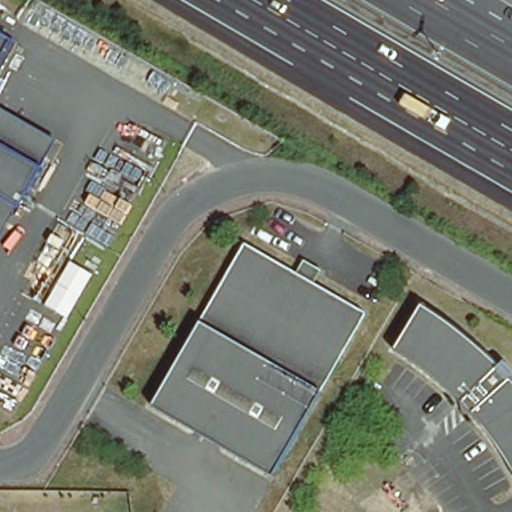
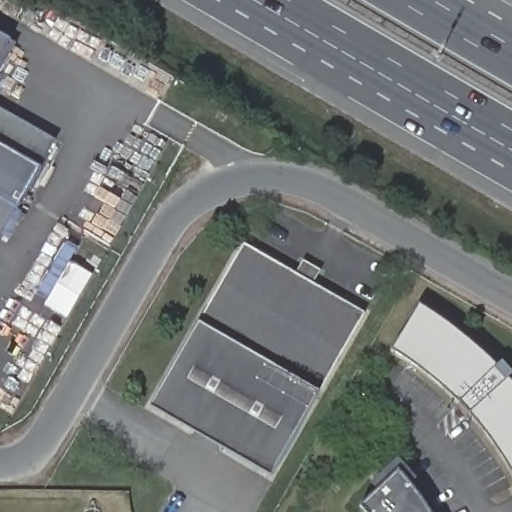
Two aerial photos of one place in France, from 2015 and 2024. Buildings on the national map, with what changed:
unchanged [(0,46),(0,33),(5,36),(0,46)]
unchanged [(35,167),(0,147),(0,103),(54,135),(35,167)]
unchanged [(12,209),(11,208),(0,202),(0,147),(35,167),(17,200),(12,209)]
unchanged [(0,202),(11,208),(0,227),(0,202)]
unchanged [(268,478),(148,406),(246,241),(294,270),(304,252),(325,265),(315,281),(365,311),(268,478)]
unchanged [(511,464),(497,443),(481,422),(465,403),(446,385),(426,368),(406,353),(392,345),(420,300),(436,310),(460,327),(481,346),(496,361),(502,367),(510,375),(512,378),(512,465),(511,464)]
new [(406,477),(416,491),(428,509),(430,512),(370,512),(363,504),(378,490),(371,482),(398,457),(412,471),(406,477)]

